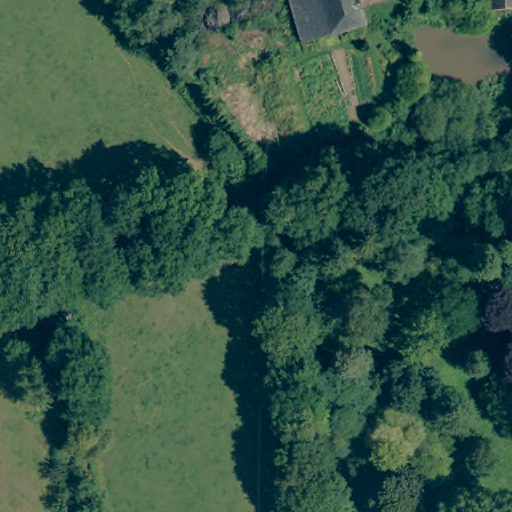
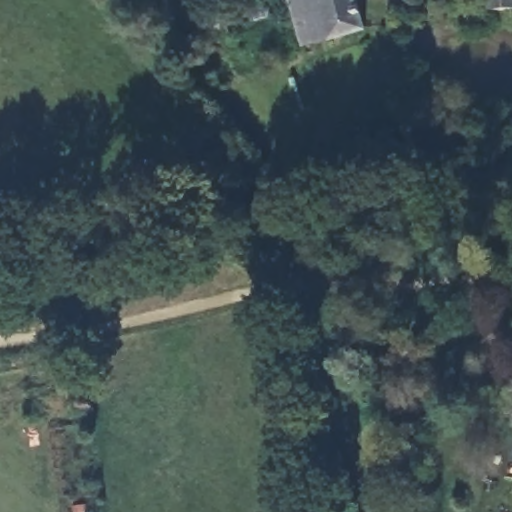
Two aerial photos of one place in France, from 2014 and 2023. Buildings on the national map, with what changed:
unchanged [(300,42),(287,0),(355,0),(363,26),(300,42)]
unchanged [(512,0),(512,10),(486,12),(485,0),(512,0)]

